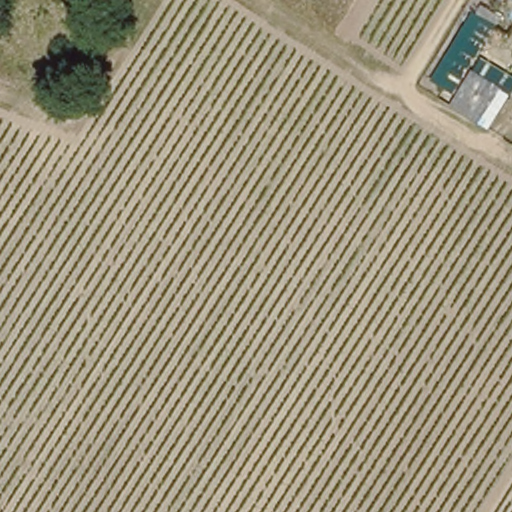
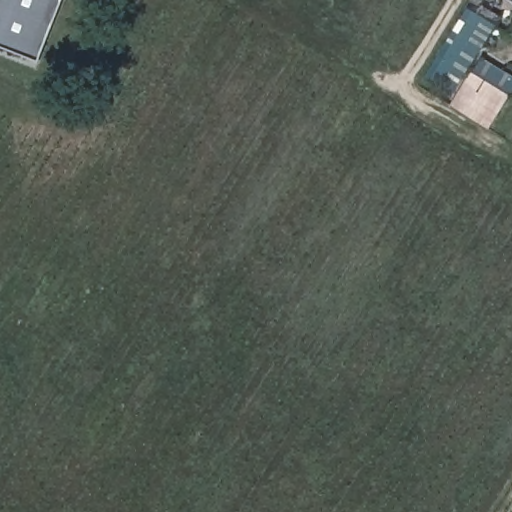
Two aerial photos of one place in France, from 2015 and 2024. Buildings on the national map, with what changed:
new [(33,63),(0,49),(0,0),(59,0),(33,63)]
unchanged [(478,127),(448,106),(450,96),(425,86),(475,3),(500,17),(465,76),(493,100),(478,127)]

